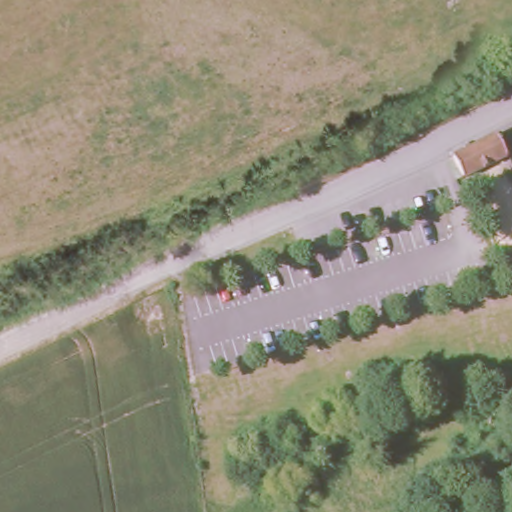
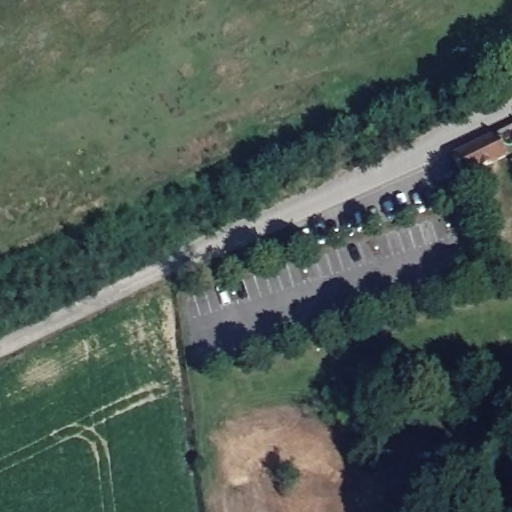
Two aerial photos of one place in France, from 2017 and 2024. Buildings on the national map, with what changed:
unchanged [(458,170),(447,148),(491,126),(502,149),(458,170)]

